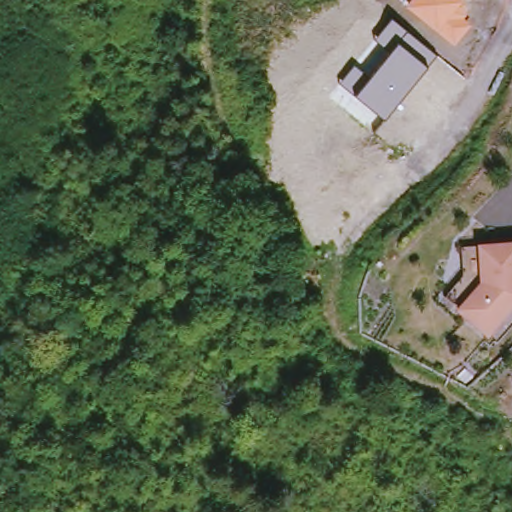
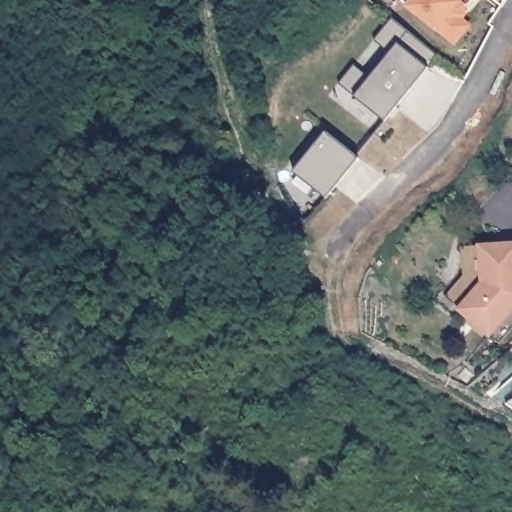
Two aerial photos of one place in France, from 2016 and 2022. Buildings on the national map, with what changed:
unchanged [(458,1),(472,10),(464,19),(472,24),(454,44),(405,4),(409,0),(458,0),(458,1)]
unchanged [(436,55),(386,118),(340,84),(355,65),(370,76),(390,52),(374,40),(392,21),(436,55)]
new [(325,195),(295,171),(326,133),(358,157),(325,195)]
unchanged [(474,305),(485,305),(483,257),(512,256),(512,323),(491,346),(461,319),(474,305)]

